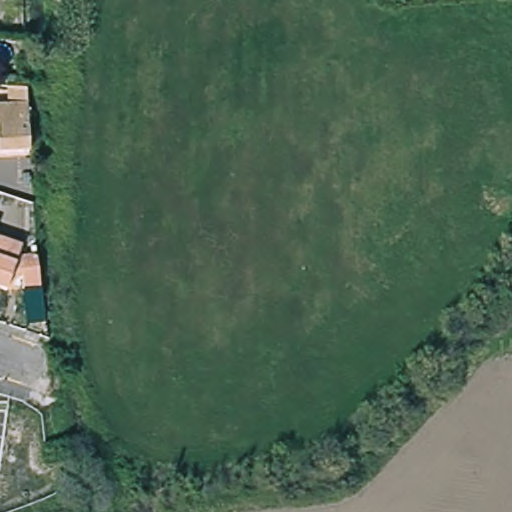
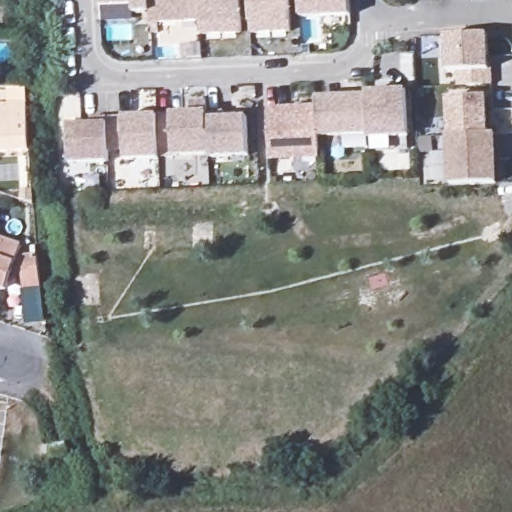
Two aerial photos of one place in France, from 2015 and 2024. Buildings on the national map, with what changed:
new [(150,25),(149,15),(133,15),(133,8),(99,9),(99,0),(199,0),(201,23),(150,25)]
new [(241,35),(202,35),(201,23),(199,0),(239,0),(240,22),(241,35)]
new [(251,36),(250,0),(290,0),(291,35),(251,36)]
new [(301,22),(300,0),(350,0),(351,20),(301,22)]
new [(486,29),(487,64),(489,64),(491,80),(456,81),(456,66),(446,66),(444,30),(486,29)]
new [(364,87),(386,86),(386,84),(404,83),(405,129),(366,131),(364,87)]
new [(314,93),(340,92),(364,91),(366,127),(316,129),(316,148),(266,150),(264,103),(314,101),(314,93)]
new [(484,92),(485,130),(449,131),(447,93),(484,92)]
new [(188,107),(187,96),(203,95),(204,106),(206,147),(169,148),(168,107),(188,107)]
unchanged [(26,145),(0,147),(0,100),(23,98),(26,145)]
new [(221,105),(221,111),(243,111),(245,149),(206,150),(206,147),(204,106),(221,105)]
new [(88,117),(87,111),(103,110),(105,155),(65,156),(64,118),(88,117)]
new [(169,148),(206,147),(206,150),(245,149),(246,157),(173,158),(173,153),(159,154),(159,160),(123,161),(123,151),(105,153),(104,117),(120,116),(121,116),(154,115),(155,113),(168,112),(169,148)]
new [(449,131),(485,130),(492,129),(494,179),(449,180),(447,131),(449,131)]
unchanged [(14,251),(24,250),(29,285),(13,287),(10,271),(7,272),(0,291),(0,242),(15,247),(14,251)]
unchanged [(43,437),(60,434),(61,445),(44,448),(43,437)]

